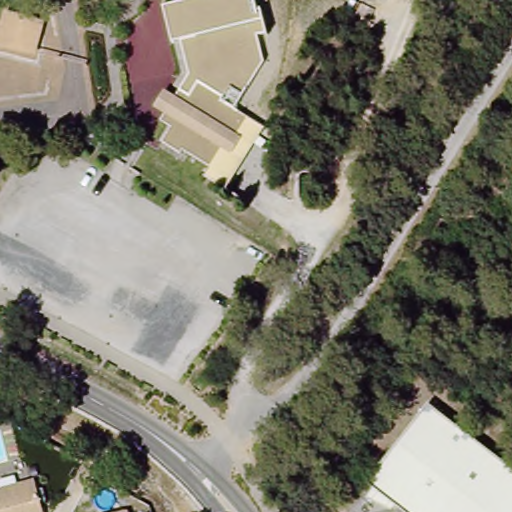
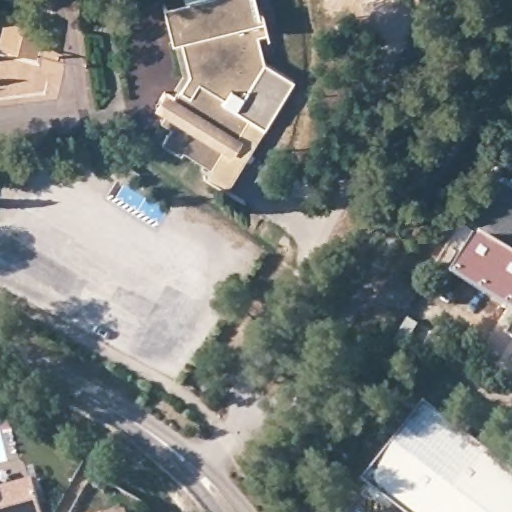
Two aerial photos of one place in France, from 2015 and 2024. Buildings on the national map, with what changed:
unchanged [(188,71),(164,6),(187,0),(258,0),(266,33),(257,35),(264,63),(235,111),(222,104),(224,100),(200,84),(190,99),(180,93),(188,71)]
unchanged [(9,47),(16,20),(44,28),(38,56),(9,47)]
new [(248,119),(235,111),(264,63),(295,84),(264,130),(248,119)]
unchanged [(232,154),(223,148),(210,168),(184,150),(181,154),(163,141),(170,127),(162,122),(165,114),(157,107),(167,94),(176,100),(180,93),(190,99),(200,84),(224,100),(222,104),(235,111),(248,119),(236,139),(240,141),(232,154)]
new [(460,278),(484,236),(512,252),(512,309),(460,278)]
unchanged [(393,511),(369,501),(377,490),(371,484),(430,405),(512,469),(512,512),(406,512),(398,505),(393,511)]
unchanged [(40,480),(49,512),(0,512),(0,491),(40,480)]

